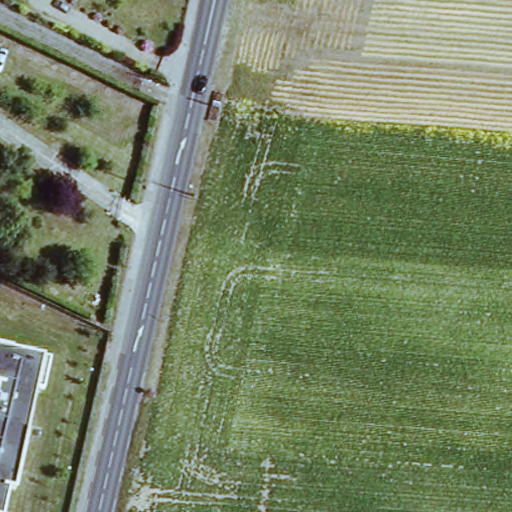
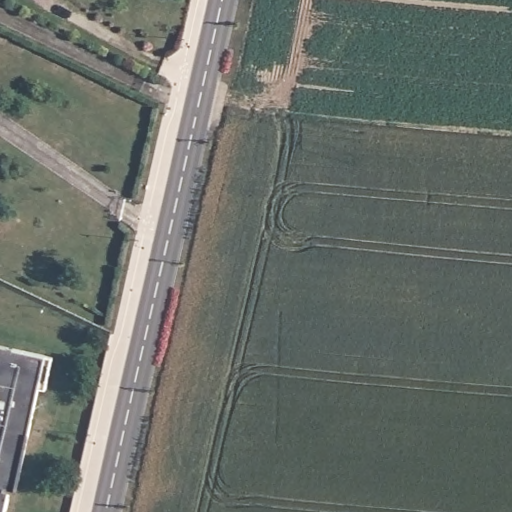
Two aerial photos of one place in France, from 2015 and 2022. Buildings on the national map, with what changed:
unchanged [(46,393),(40,391),(18,496),(9,495),(5,512),(0,512),(0,347),(52,361),(46,393)]

